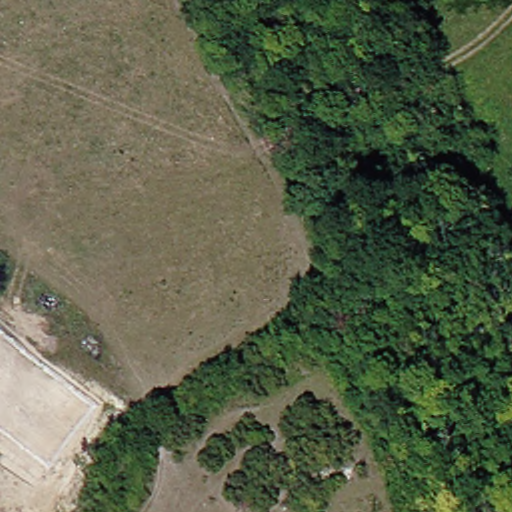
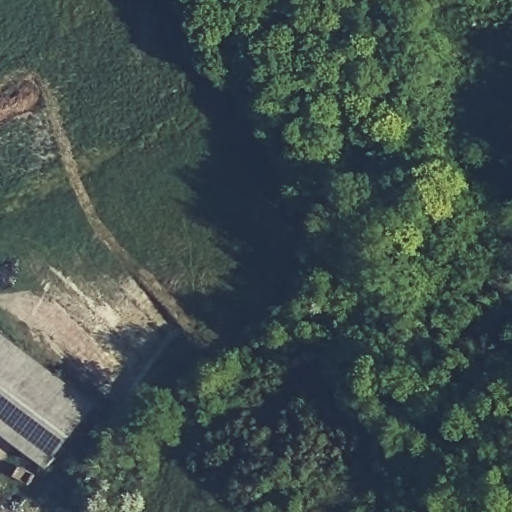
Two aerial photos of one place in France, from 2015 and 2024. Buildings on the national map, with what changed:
new [(97,404),(49,469),(0,431),(0,330),(97,404)]

